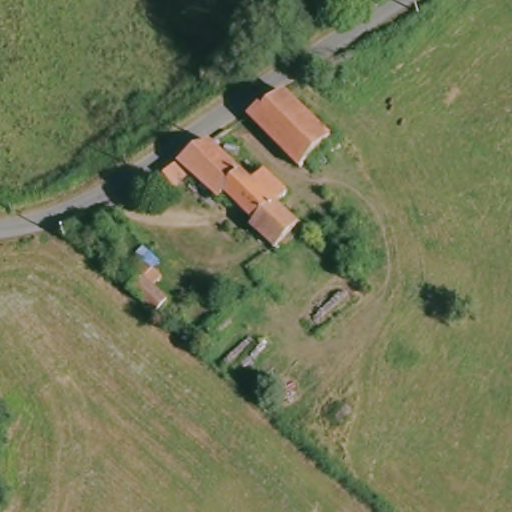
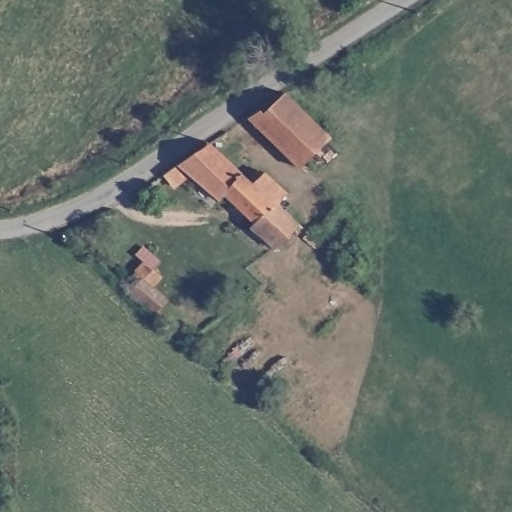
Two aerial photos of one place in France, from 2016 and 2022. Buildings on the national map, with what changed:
unchanged [(335,141),(307,168),(248,110),(263,101),(268,105),(283,93),(335,141)]
unchanged [(277,170),(297,192),(284,204),(311,231),(282,259),(256,233),(262,227),(232,198),(226,204),(200,178),(185,189),(170,175),(219,141),(262,184),(277,170)]
unchanged [(334,224),(351,240),(334,257),(317,241),(334,224)]
unchanged [(145,272),(160,286),(157,292),(173,309),(161,322),(126,291),(145,272)]

